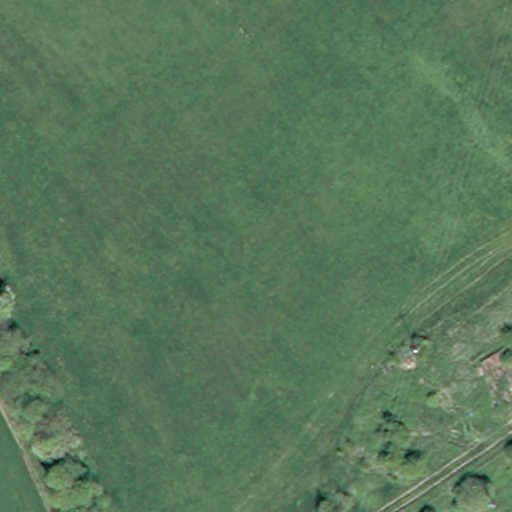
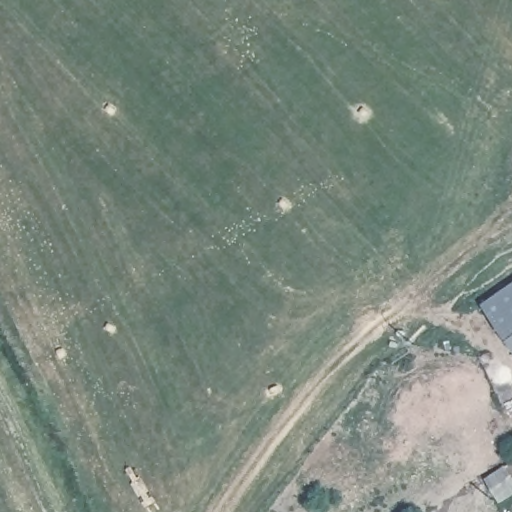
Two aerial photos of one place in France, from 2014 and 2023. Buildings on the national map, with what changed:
new [(484,306),(512,287),(512,348),(484,306)]

